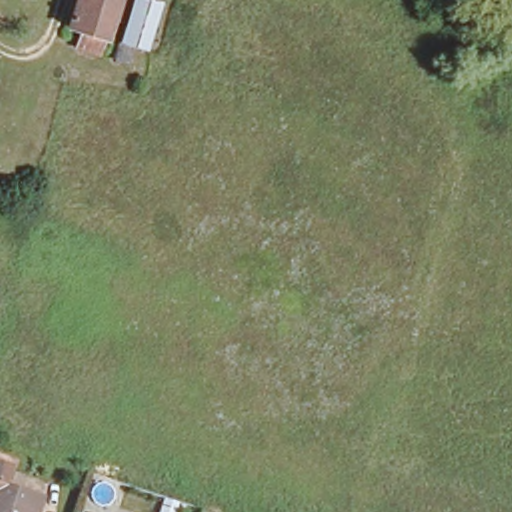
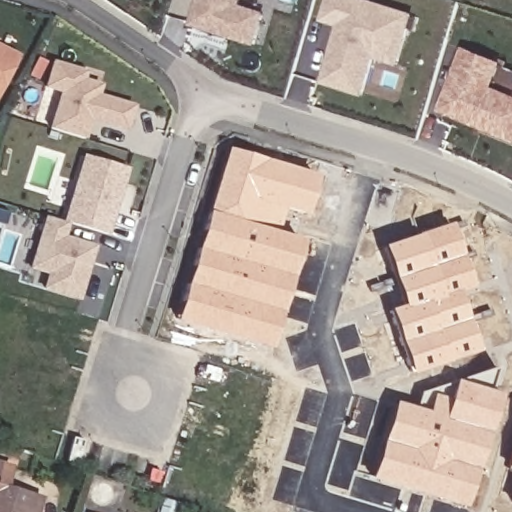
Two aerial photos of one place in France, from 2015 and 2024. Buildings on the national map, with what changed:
demolished [(136,49),(130,66),(111,63),(122,24),(109,22),(98,57),(73,49),(79,34),(63,30),(72,0),(157,0),(161,1),(146,51),(136,49)]
new [(244,0),(243,5),(268,12),(258,47),(191,26),(198,0),(244,0)]
new [(320,22),(327,0),(371,0),(417,14),(401,67),(375,60),(365,97),(322,84),(338,27),(320,22)]
new [(0,93),(0,45),(20,55),(0,93)]
new [(465,47),(505,63),(496,87),(512,94),(512,142),(439,112),(465,47)]
new [(60,93),(44,88),(53,59),(88,70),(86,78),(103,83),(101,93),(135,104),(128,132),(91,121),(86,138),(49,127),(60,93)]
new [(318,175),(306,216),(286,210),(279,232),(304,239),(270,349),(175,320),(227,147),(318,175)]
new [(63,221),(83,153),(130,167),(110,235),(71,225),(67,235),(97,245),(80,301),(43,289),(46,274),(29,269),(45,215),(63,221)]
new [(417,233),(451,222),(472,287),(459,292),(478,351),(446,362),(409,373),(387,309),(401,305),(381,246),(417,233)]
new [(425,411),(431,392),(447,397),(452,379),(500,394),(465,508),(369,478),(393,401),(425,411)]
new [(506,467),(512,448),(512,469),(506,467)]
unchanged [(5,483),(40,493),(34,512),(0,512),(0,463),(10,465),(5,483)]

